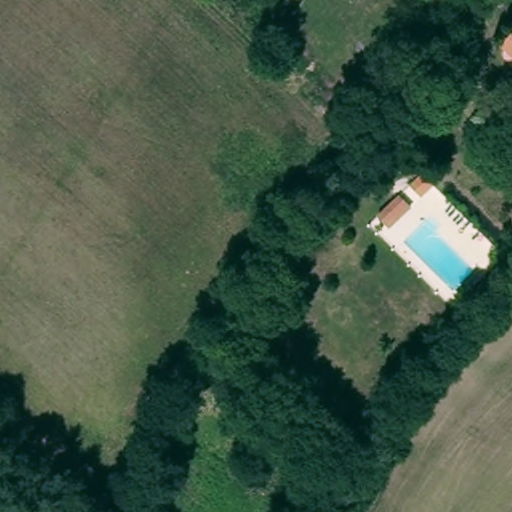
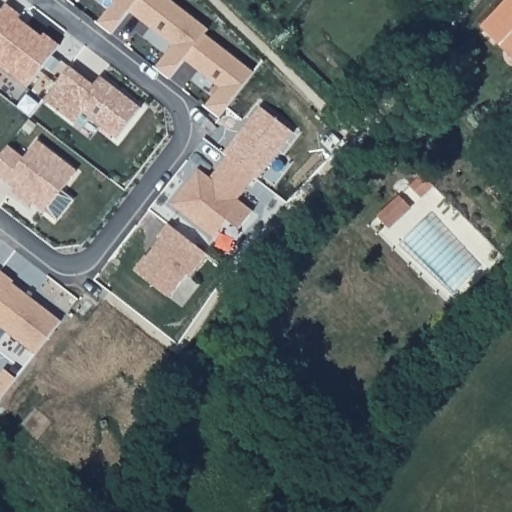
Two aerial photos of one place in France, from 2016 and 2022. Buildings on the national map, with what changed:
new [(205,31),(254,69),(221,115),(206,106),(219,86),(186,58),(171,76),(157,66),(172,44),(130,9),(114,32),(99,21),(113,0),(173,0),(208,26),(205,31)]
new [(0,64),(0,11),(7,3),(23,16),(21,19),(44,34),(46,31),(60,43),(28,86),(0,64)]
new [(120,136),(86,110),(76,121),(45,98),(71,63),(96,83),(102,74),(140,105),(120,136)]
unchanged [(425,79),(435,86),(399,128),(390,119),(425,79)]
new [(25,159),(39,141),(77,172),(47,210),(0,174),(0,157),(9,146),(25,159)]
new [(212,178),(219,169),(229,155),(257,177),(240,199),(255,211),(241,229),(230,220),(217,238),(173,204),(200,169),(212,178)]
unchanged [(421,173),(432,185),(420,198),(408,185),(421,173)]
unchanged [(398,195),(410,207),(387,227),(377,215),(398,195)]
new [(147,255),(149,257),(162,239),(160,237),(170,224),(209,254),(192,276),(189,274),(171,297),(137,270),(147,255)]
new [(15,280),(14,283),(62,321),(37,354),(0,325),(0,271),(1,270),(15,280)]

